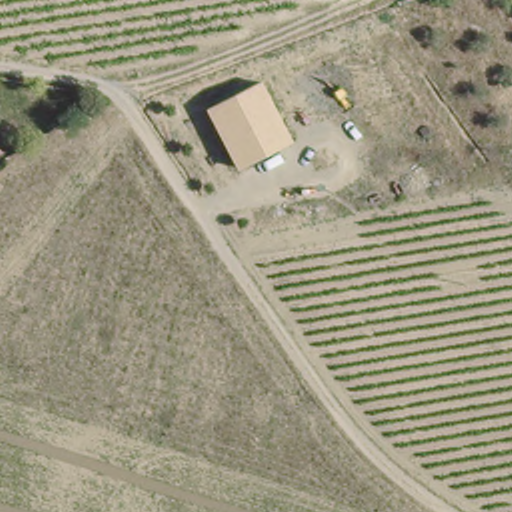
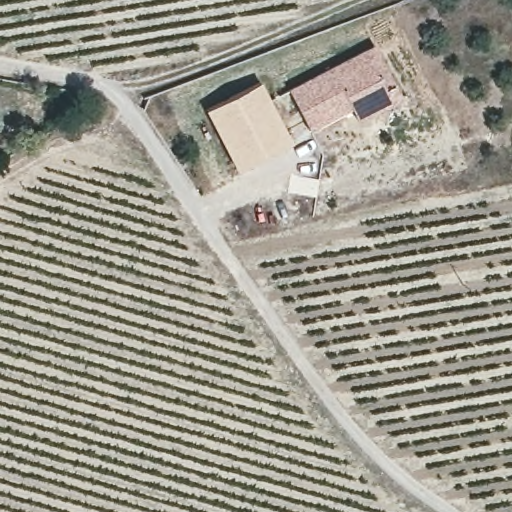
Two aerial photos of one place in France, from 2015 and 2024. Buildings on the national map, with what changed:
new [(403,101),(359,123),(351,109),(309,130),(288,88),(374,44),(403,101)]
unchanged [(263,84),(293,139),(238,167),(208,109),(263,84)]

